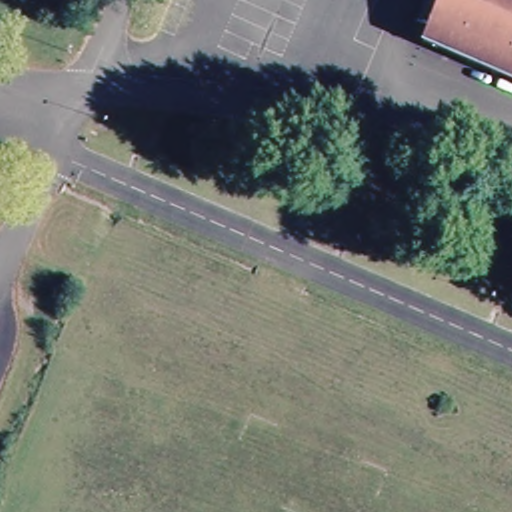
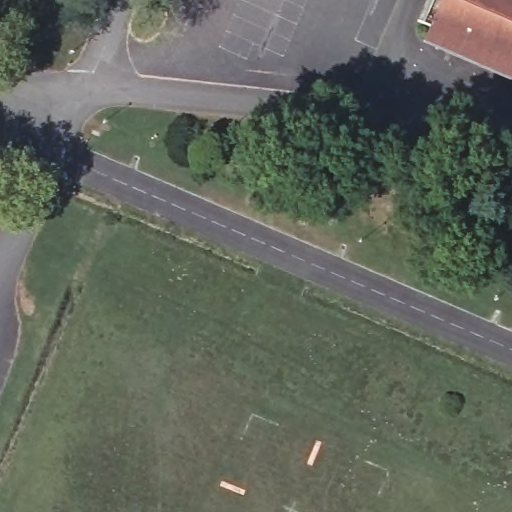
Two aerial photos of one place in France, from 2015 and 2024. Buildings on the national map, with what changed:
unchanged [(438,0),(512,0),(512,78),(420,39),(438,0)]

